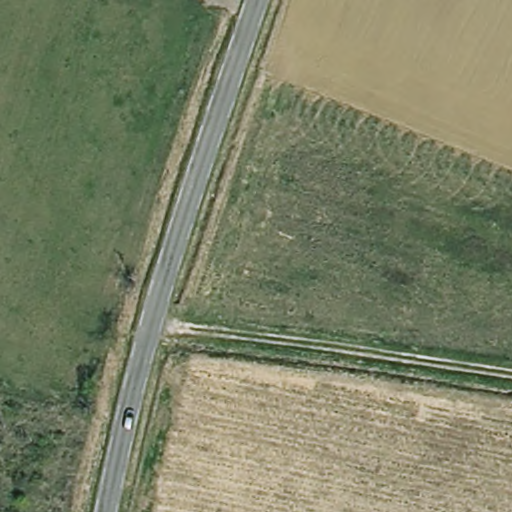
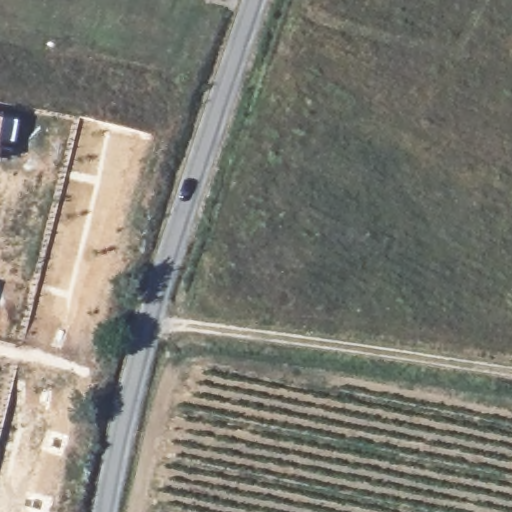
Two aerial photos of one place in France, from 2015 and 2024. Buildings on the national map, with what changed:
new [(4,118),(19,121),(15,141),(1,139),(0,141),(0,117),(4,118)]

